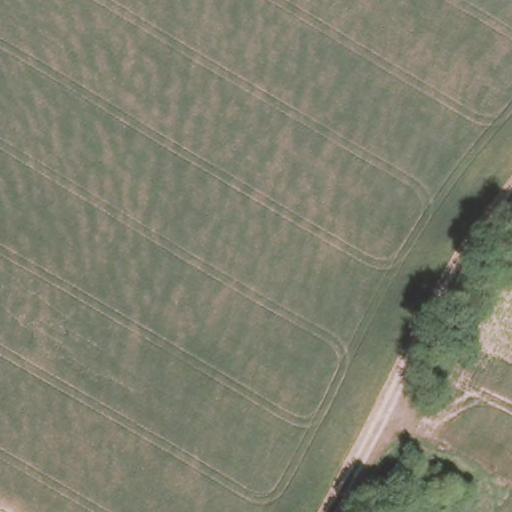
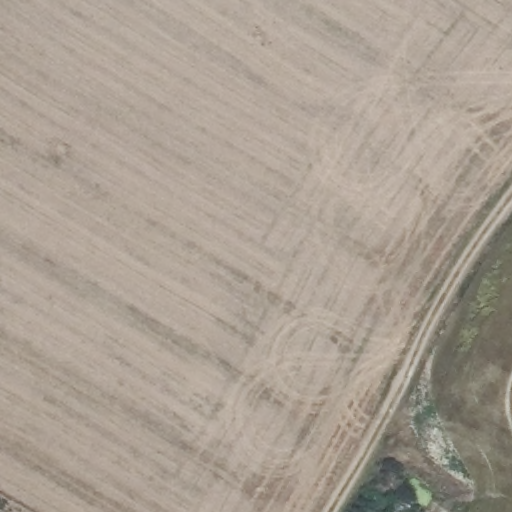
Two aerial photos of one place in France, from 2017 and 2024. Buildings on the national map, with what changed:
unchanged [(393,512),(384,512),(387,507),(393,512)]

